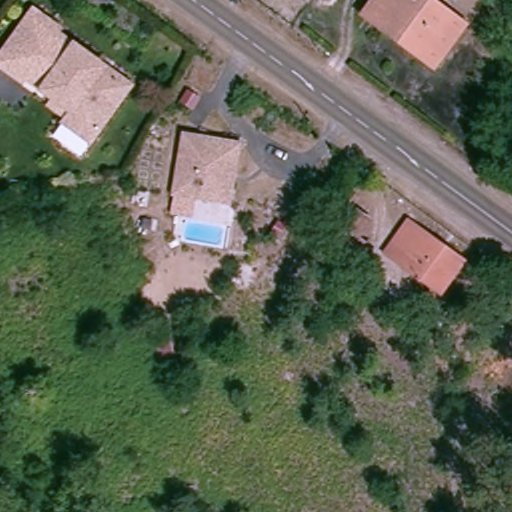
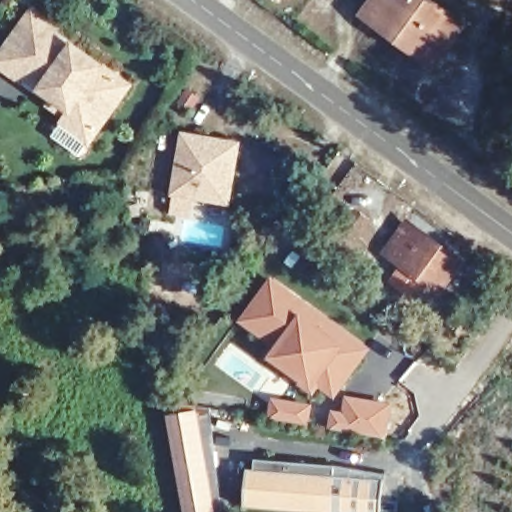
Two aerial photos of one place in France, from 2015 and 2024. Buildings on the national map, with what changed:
unchanged [(432,67),(413,54),(418,47),(365,10),(373,0),(431,0),(464,25),(432,67)]
unchanged [(47,93),(17,72),(15,75),(0,64),(0,41),(26,4),(52,22),(50,25),(110,69),(124,79),(110,97),(74,149),(46,130),(60,111),(42,99),(47,93)]
unchanged [(179,129),(232,139),(221,196),(167,186),(179,129)]
unchanged [(357,236),(345,228),(355,211),(368,220),(357,236)]
unchanged [(464,256),(443,285),(392,249),(413,220),(464,256)]
new [(269,275),(311,304),(370,347),(334,398),(318,387),(313,395),(265,357),(272,347),(236,321),(269,275)]
new [(330,407),(341,410),(344,394),(392,401),(385,438),(326,427),(330,407)]
new [(270,396),(311,404),(307,425),(266,417),(270,396)]
new [(217,512),(185,512),(166,415),(197,409),(217,512)]
new [(384,478),(381,512),(319,512),(245,505),(247,467),(255,468),(256,460),(335,465),(333,475),(384,478)]

